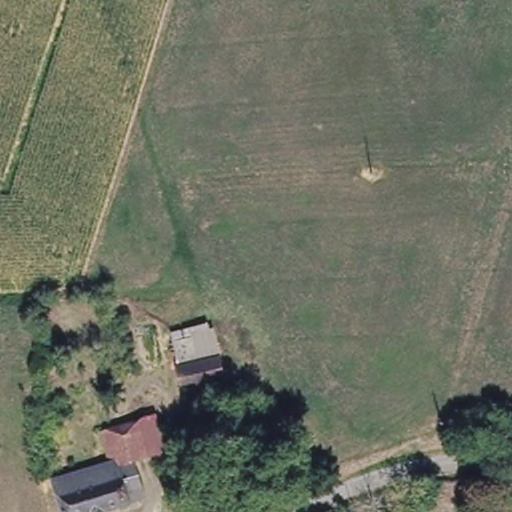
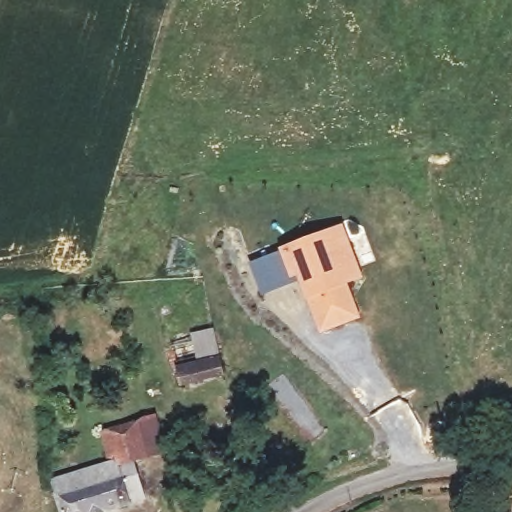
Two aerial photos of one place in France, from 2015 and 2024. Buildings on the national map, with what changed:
new [(361,280),(346,285),(360,319),(318,335),(306,298),(297,276),(291,279),(279,250),(342,225),(361,280)]
unchanged [(220,355),(173,365),(167,335),(210,323),(220,355)]
unchanged [(177,387),(173,365),(220,355),(226,377),(177,387)]
unchanged [(50,471),(107,457),(100,425),(155,408),(167,450),(136,460),(144,494),(89,512),(58,512),(50,471)]
unchanged [(258,483),(251,443),(273,440),(280,477),(258,483)]

